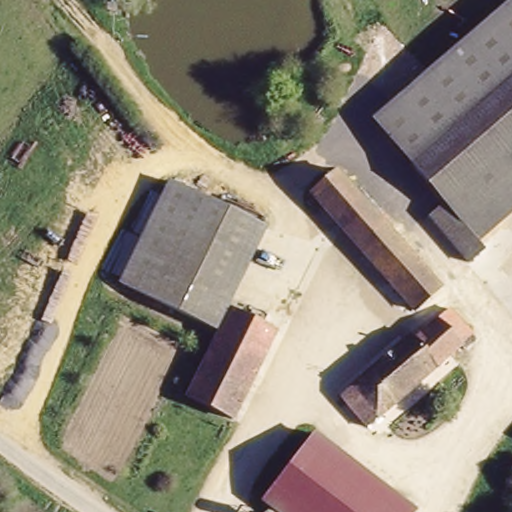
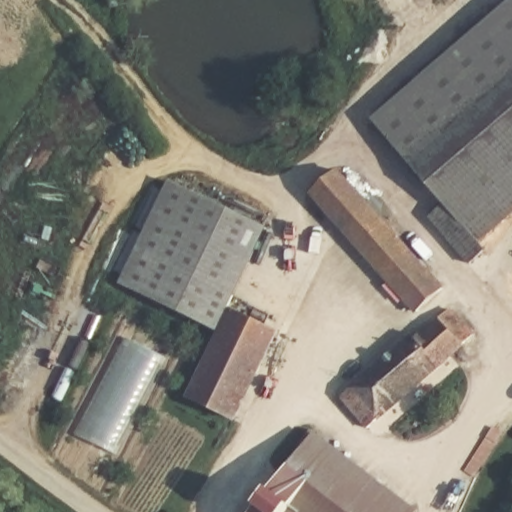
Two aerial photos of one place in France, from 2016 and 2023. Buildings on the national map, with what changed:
unchanged [(410,163),(373,117),(510,0),(512,0),(512,73),(410,163)]
unchanged [(472,239),(442,202),(410,163),(512,73),(512,204),(472,239)]
unchanged [(412,315),(306,196),(332,172),(382,228),(394,217),(413,239),(417,236),(454,278),(412,315)]
unchanged [(215,332),(122,285),(172,184),(220,207),(265,230),(215,332)]
unchanged [(472,239),(480,249),(464,264),(425,216),(442,202),(472,239)]
unchanged [(474,335),(368,427),(342,397),(410,333),(416,339),(450,308),(474,335)]
unchanged [(211,353),(220,335),(230,314),(275,334),(256,374),(211,353)]
new [(113,455),(75,435),(125,337),(166,357),(113,455)]
unchanged [(232,424),(188,401),(211,353),(256,374),(232,424)]
unchanged [(382,512),(277,512),(264,502),(318,435),(395,496),(382,512)]
unchanged [(415,511),(414,512),(382,512),(395,496),(415,511)]

